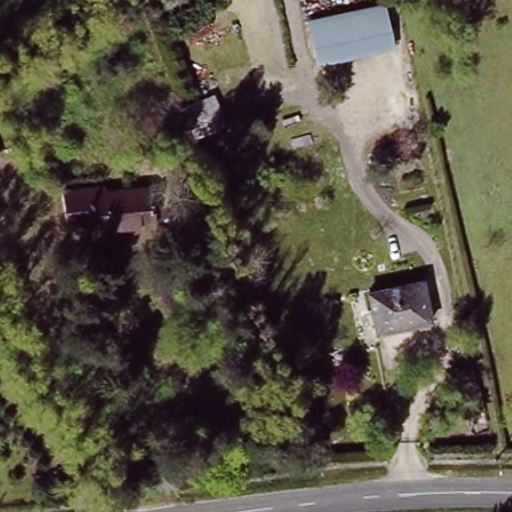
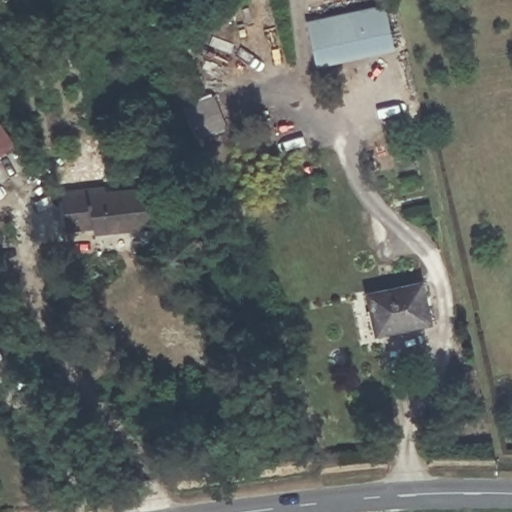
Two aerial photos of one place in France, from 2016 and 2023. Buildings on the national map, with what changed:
unchanged [(384,12),(393,54),(319,70),(310,29),(384,12)]
unchanged [(101,231),(97,220),(62,224),(59,195),(149,182),(161,222),(101,231)]
unchanged [(421,285),(430,323),(377,334),(369,295),(421,285)]

